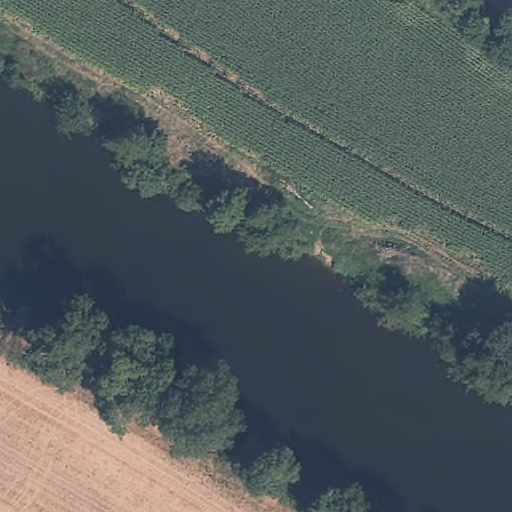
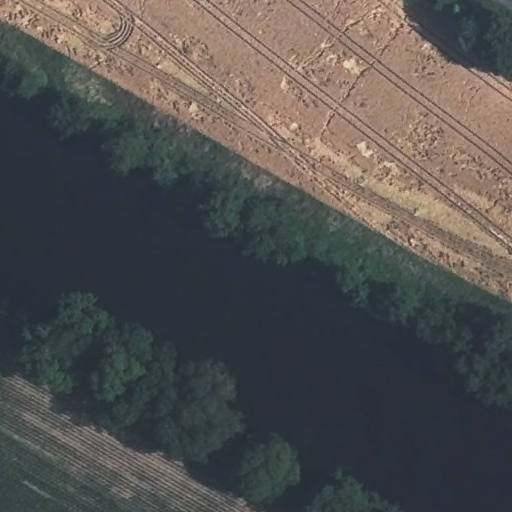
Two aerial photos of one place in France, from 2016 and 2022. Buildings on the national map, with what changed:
[]

